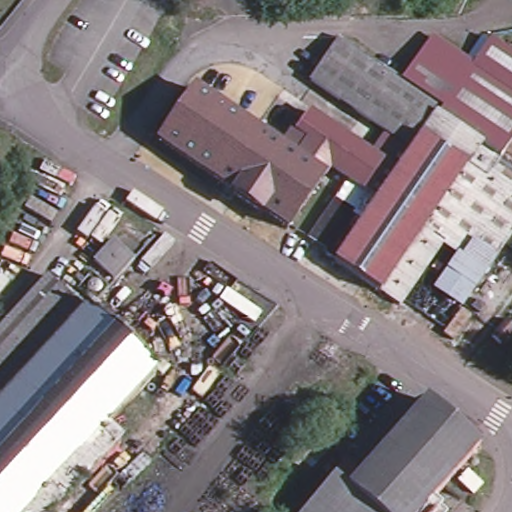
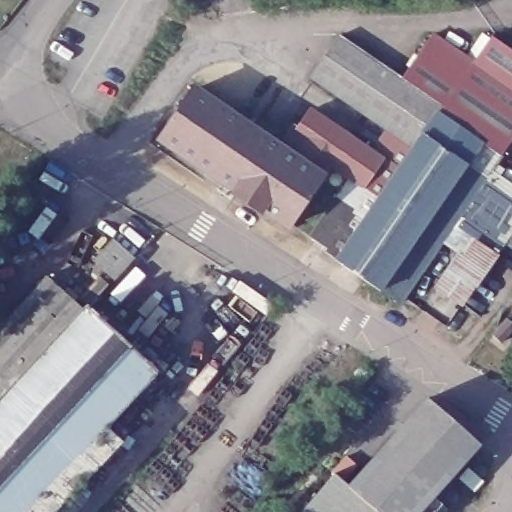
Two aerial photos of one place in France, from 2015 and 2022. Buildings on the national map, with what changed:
unchanged [(336,258),(336,257),(380,195),(351,176),(331,162),(323,173),(288,224),(264,208),(262,211),(233,191),(235,189),(160,138),(196,86),(256,127),(280,144),(295,123),(298,126),(311,107),(375,151),(384,138),(388,131),(401,140),(403,138),(390,129),(311,76),(341,33),(403,75),(445,104),(440,112),(500,153),(495,161),(485,175),(448,229),(445,226),(437,237),(442,240),(400,301),(381,288),(381,289),(336,258)]
unchanged [(432,33),(473,61),(445,104),(403,75),(432,33)]
unchanged [(512,138),(502,153),(501,152),(500,153),(440,112),(445,104),(473,61),(492,33),(512,46),(512,138)]
unchanged [(512,181),(512,247),(503,242),(464,300),(439,282),(460,251),(442,240),(437,237),(445,226),(448,229),(485,175),(495,161),(503,167),(500,172),(512,181)]
unchanged [(351,176),(380,195),(336,257),(326,250),(328,247),(310,235),(351,176)]
unchanged [(89,266),(107,245),(130,264),(111,285),(89,266)]
unchanged [(15,313),(47,278),(88,311),(55,348),(15,313)]
unchanged [(88,311),(157,374),(107,430),(123,443),(57,512),(0,512),(0,408),(55,348),(88,311)]
unchanged [(55,348),(0,408),(0,328),(15,313),(55,348)]
unchanged [(502,327),(511,334),(497,350),(488,342),(502,327)]
unchanged [(406,426),(429,401),(478,444),(419,512),(303,512),(336,474),(350,488),(406,426)]

